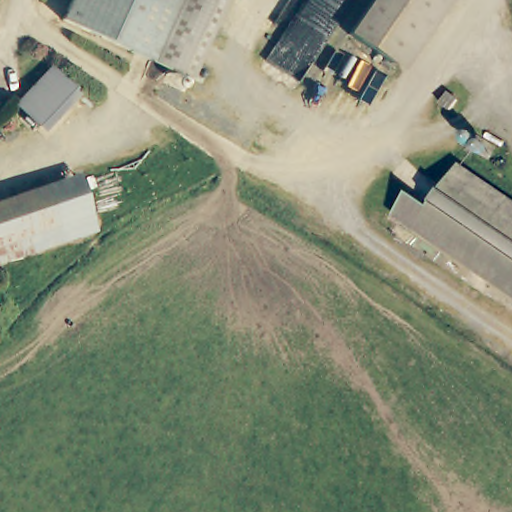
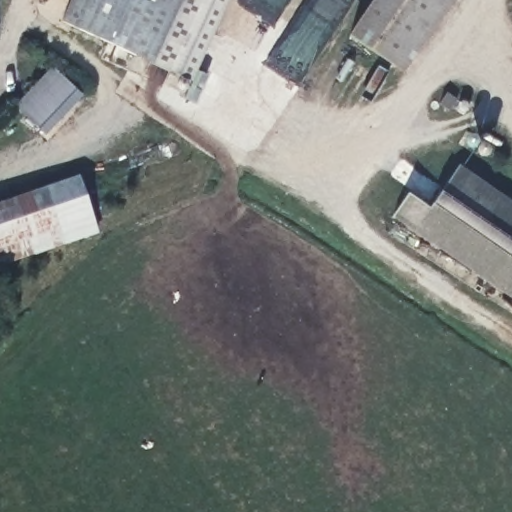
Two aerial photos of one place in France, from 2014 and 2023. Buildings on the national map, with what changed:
unchanged [(65,20),(74,0),(119,0),(101,37),(65,20)]
unchanged [(194,79),(101,37),(119,0),(230,0),(194,79)]
unchanged [(400,70),(358,42),(385,0),(445,0),(400,70)]
unchanged [(58,67),(81,89),(45,129),(22,107),(58,67)]
unchanged [(512,205),(512,301),(393,219),(408,197),(427,210),(457,167),(512,205)]
unchanged [(100,229),(0,262),(0,202),(82,174),(100,229)]

